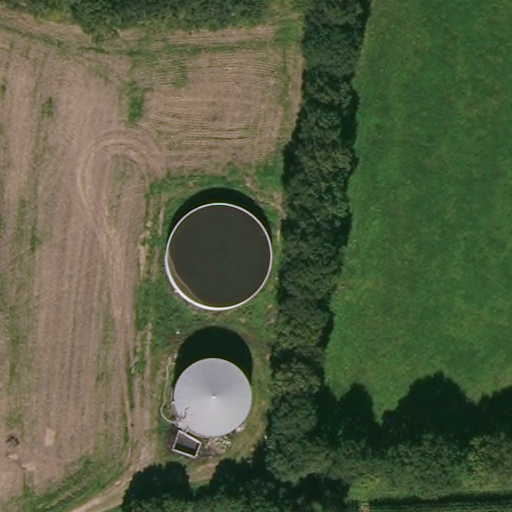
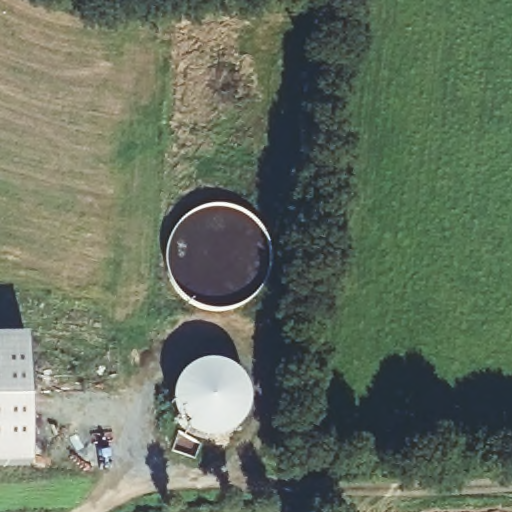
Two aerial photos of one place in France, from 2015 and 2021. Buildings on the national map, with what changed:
new [(27,346),(32,473),(0,475),(0,347),(27,346)]

